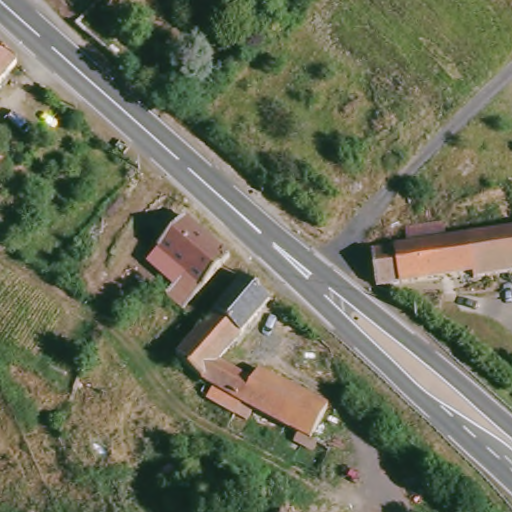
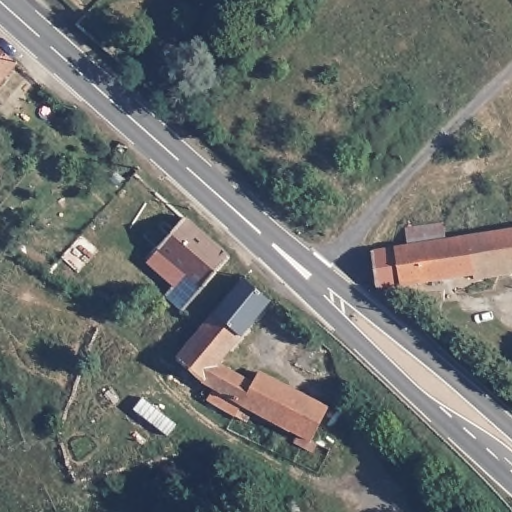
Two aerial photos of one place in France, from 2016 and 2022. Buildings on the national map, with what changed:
unchanged [(0,38),(25,59),(0,87),(0,38)]
unchanged [(0,156),(10,163),(0,176),(0,156)]
unchanged [(188,312),(171,299),(186,280),(172,268),(178,262),(162,247),(189,213),(236,254),(188,312)]
unchanged [(445,219),(448,235),(512,226),(512,274),(479,281),(476,270),(377,286),(372,281),(367,253),(372,247),(410,241),(406,226),(445,219)]
unchanged [(315,452),(290,442),(253,420),(242,431),(218,417),(215,421),(211,419),(213,415),(202,409),(213,397),(210,396),(198,388),(173,369),(241,285),(267,303),(220,372),(252,390),(259,383),(307,408),(330,420),(315,452)]

